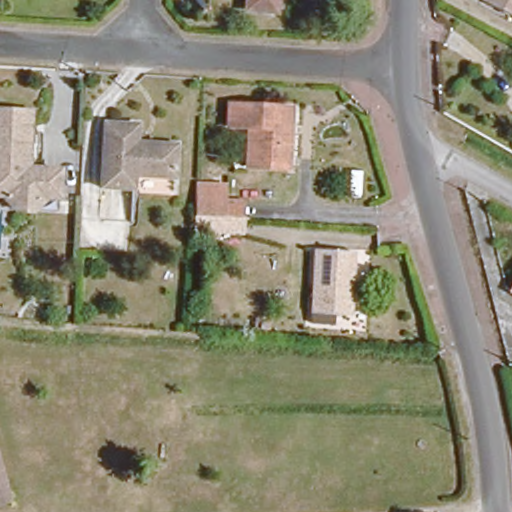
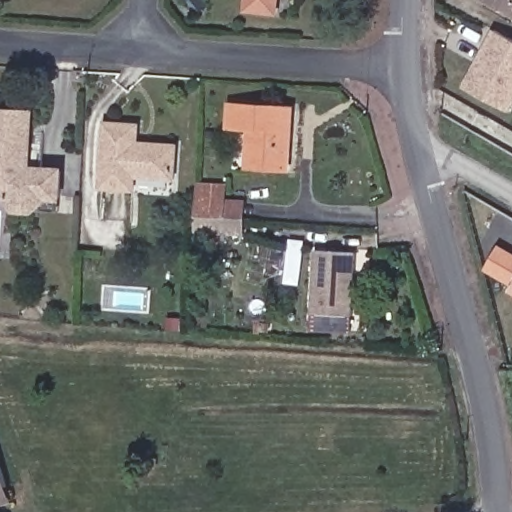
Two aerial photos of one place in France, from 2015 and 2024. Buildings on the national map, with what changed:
unchanged [(274,7),(244,5),(244,0),(274,0),(274,7)]
unchanged [(481,3),(482,0),(512,0),(512,18),(481,3)]
new [(510,110),(464,87),(494,29),(512,38),(512,107),(510,110)]
unchanged [(294,169),(242,165),(243,129),(224,127),(225,100),(293,104),(294,169)]
unchanged [(14,210),(5,196),(0,196),(0,108),(29,109),(27,168),(62,169),(60,197),(60,211),(33,211),(14,210)]
unchanged [(175,145),(174,175),(132,172),(131,189),(93,187),(98,123),(134,124),(133,142),(175,145)]
unchanged [(196,228),(196,219),(198,201),(222,201),(222,220),(221,230),(196,228)]
unchanged [(358,250),(352,313),(310,310),(314,246),(358,250)]
unchanged [(510,292),(512,289),(512,294),(510,292)]
unchanged [(0,493),(0,470),(6,490),(0,493)]
unchanged [(11,504),(0,508),(0,493),(6,490),(11,504)]

